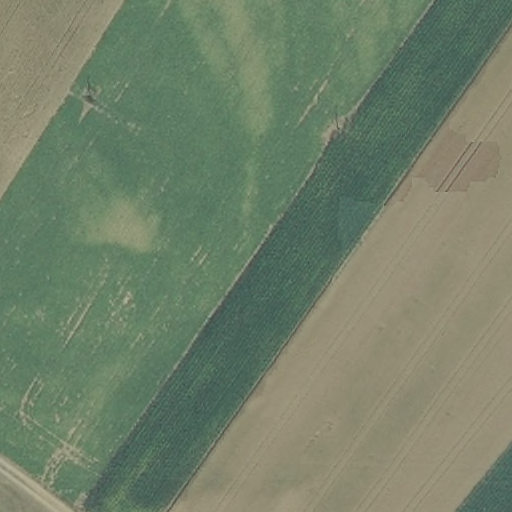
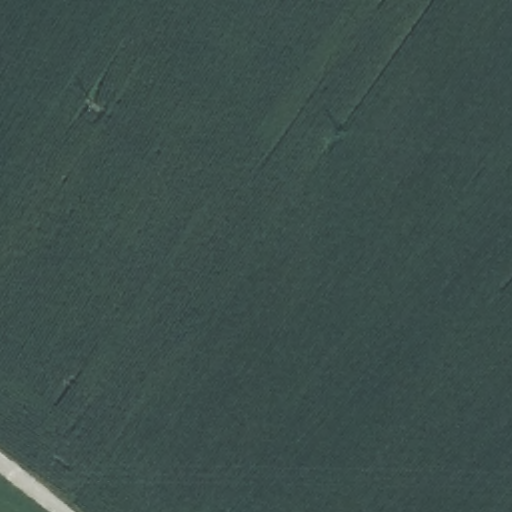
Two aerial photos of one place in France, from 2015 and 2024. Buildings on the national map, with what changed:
[]

